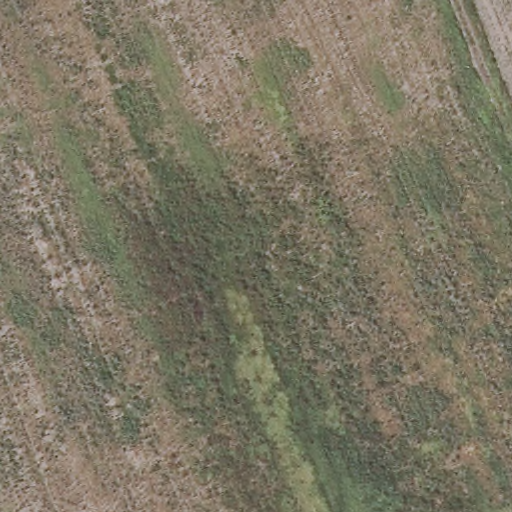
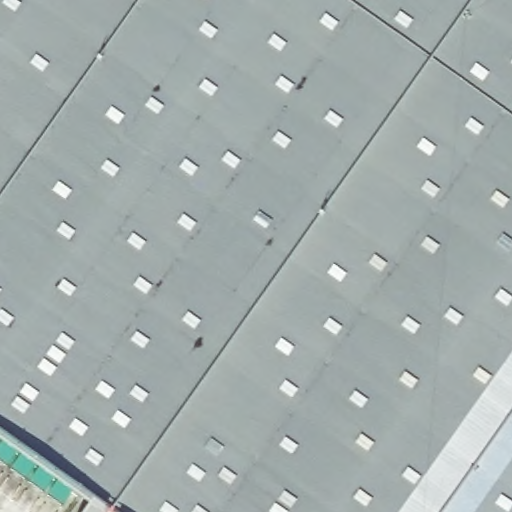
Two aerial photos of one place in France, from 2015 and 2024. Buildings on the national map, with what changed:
new [(0,433),(0,0),(512,0),(512,512),(118,512),(0,433)]
new [(95,497),(118,512),(85,512),(95,497)]

